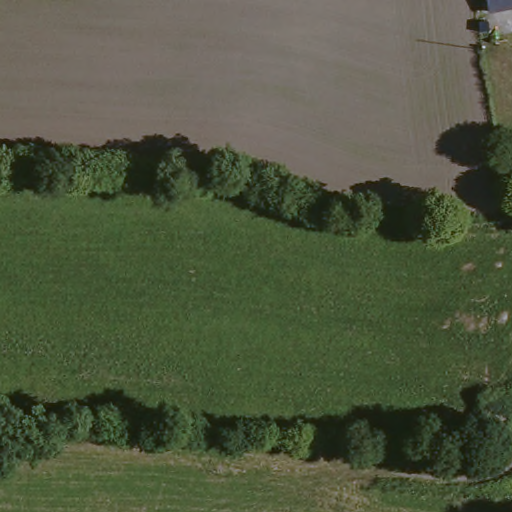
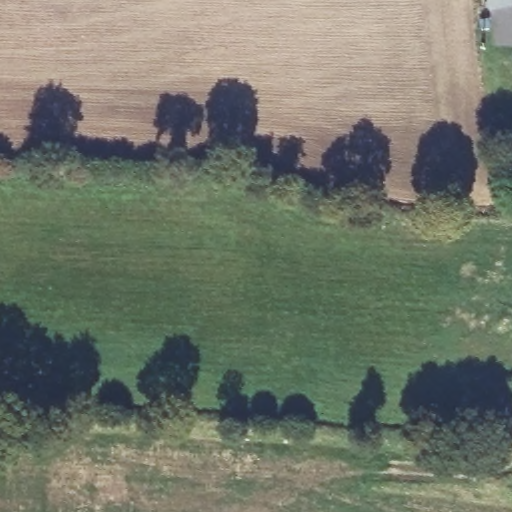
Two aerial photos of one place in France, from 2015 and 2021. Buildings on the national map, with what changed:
unchanged [(502,29),(495,0),(512,0),(512,26),(502,29)]

